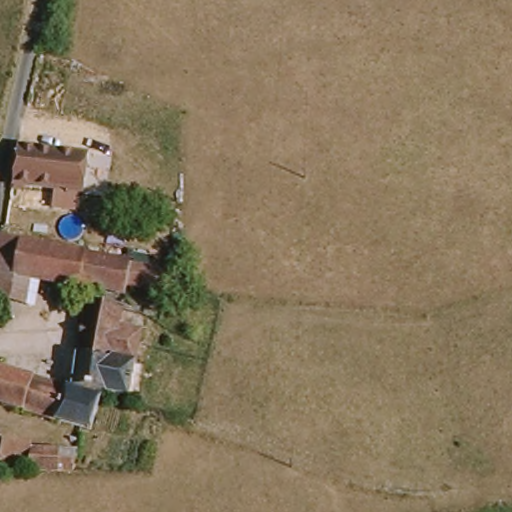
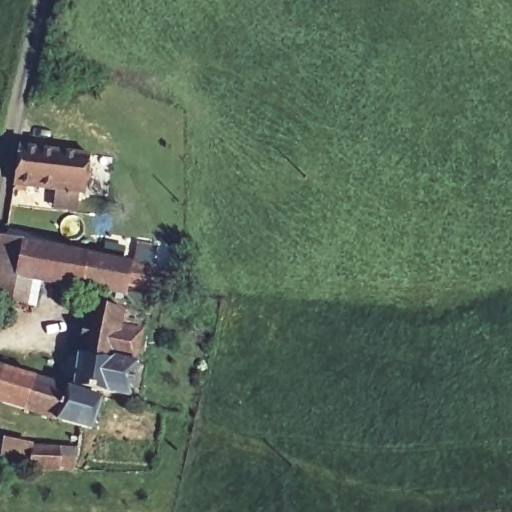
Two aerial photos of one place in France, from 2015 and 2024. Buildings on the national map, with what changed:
unchanged [(13,140),(93,153),(86,192),(5,182),(13,140)]
unchanged [(6,316),(4,341),(0,343),(0,245),(93,252),(126,255),(120,289),(19,282),(16,298),(21,299),(16,315),(6,316)]
unchanged [(64,371),(86,302),(119,306),(114,330),(135,336),(117,400),(96,393),(61,381),(64,371)]
unchanged [(61,381),(96,393),(85,426),(0,399),(0,362),(61,381)]
unchanged [(24,444),(54,446),(54,451),(53,471),(21,469),(23,459),(24,444)]

